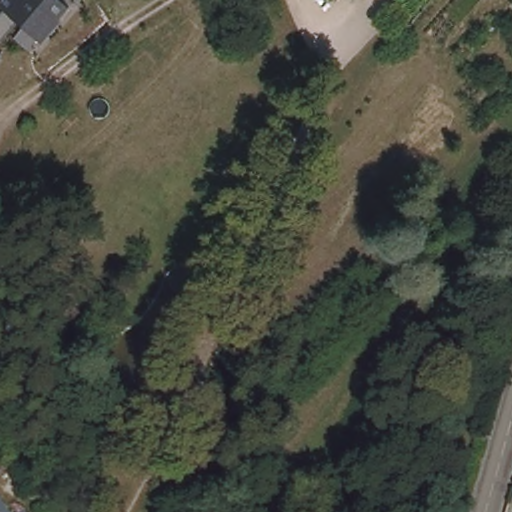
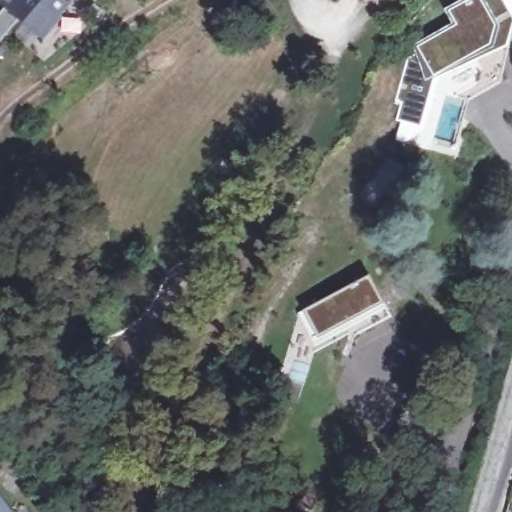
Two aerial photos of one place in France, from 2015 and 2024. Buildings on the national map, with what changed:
unchanged [(18,23),(2,45),(7,50),(0,60),(0,17),(5,11),(0,7),(0,0),(66,0),(72,5),(47,41),(18,23)]
new [(452,24),(446,10),(465,0),(503,0),(512,16),(512,23),(504,47),(483,51),(430,77),(420,125),(397,120),(401,104),(393,101),(408,55),(416,45),(452,24)]
new [(367,276),(381,302),(317,335),(304,311),(367,276)]

